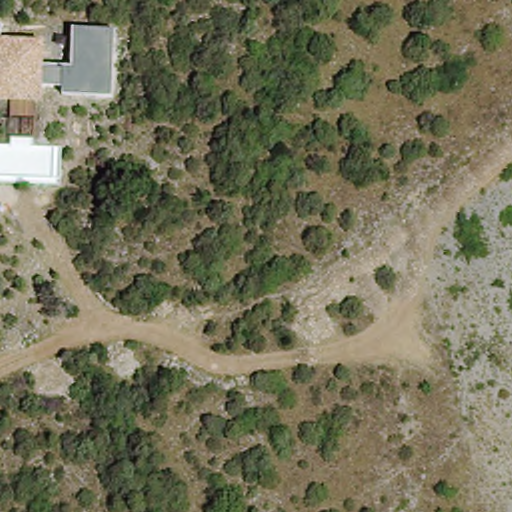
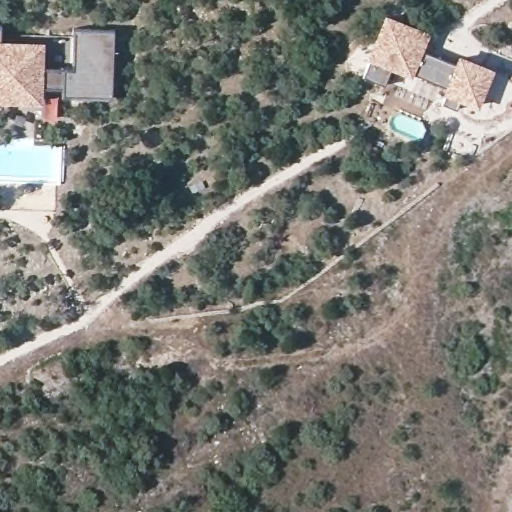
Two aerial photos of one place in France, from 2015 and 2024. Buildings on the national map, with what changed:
new [(495,69),(480,107),(459,99),(457,108),(445,101),(448,95),(445,94),(448,85),(413,73),(412,76),(390,67),(385,84),(363,75),(370,60),(368,59),(385,14),(431,31),(424,50),(457,62),(460,54),(495,69)]
unchanged [(1,25),(0,39),(45,41),(44,66),(73,66),(73,29),(116,29),(114,96),(63,94),(63,86),(44,86),(44,103),(0,102),(0,24),(1,25)]

